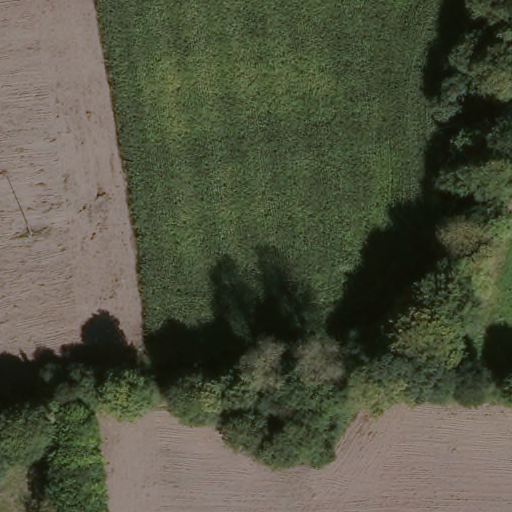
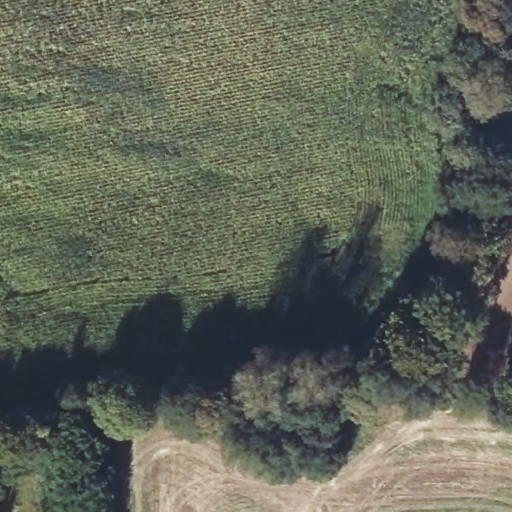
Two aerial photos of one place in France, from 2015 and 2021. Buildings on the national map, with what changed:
[]

